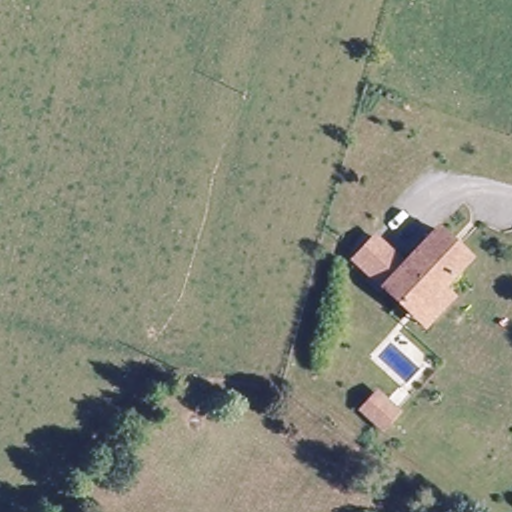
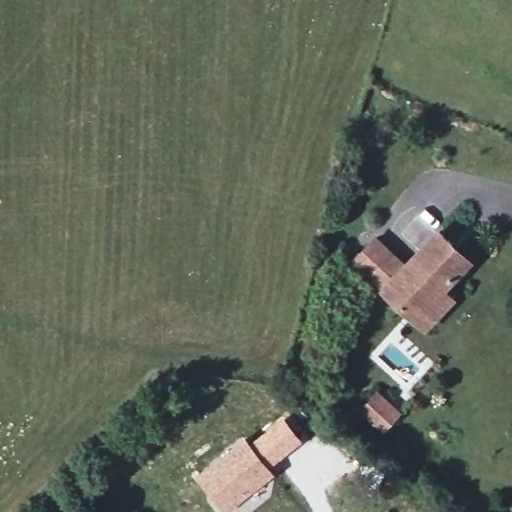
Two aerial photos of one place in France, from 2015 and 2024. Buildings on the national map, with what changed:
unchanged [(412,315),(375,281),(353,260),(374,237),(396,258),(404,264),(437,229),(451,242),(468,258),(463,262),(440,287),(451,298),(424,326),(412,315)]
unchanged [(384,427),(365,409),(380,393),(401,410),(384,427)]
new [(227,511),(197,474),(247,435),(276,472),(227,511)]

